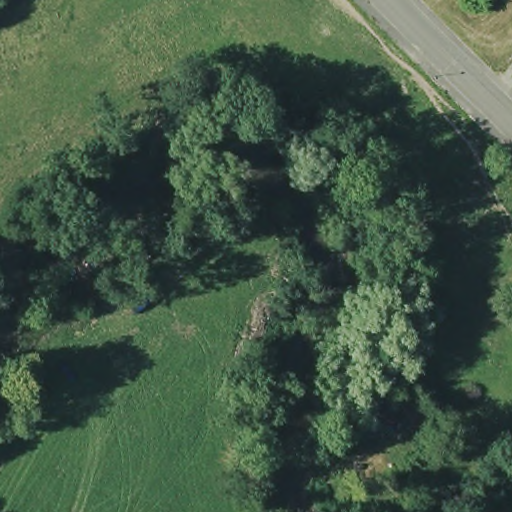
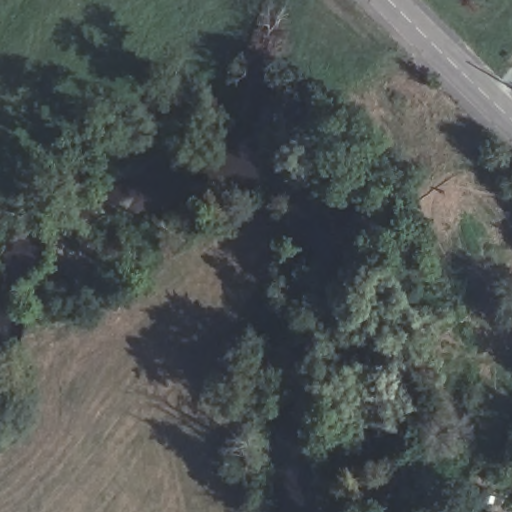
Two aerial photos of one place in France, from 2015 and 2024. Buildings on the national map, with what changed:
unchanged [(387,390),(410,423),(396,434),(383,418),(375,423),(362,409),(387,390)]

